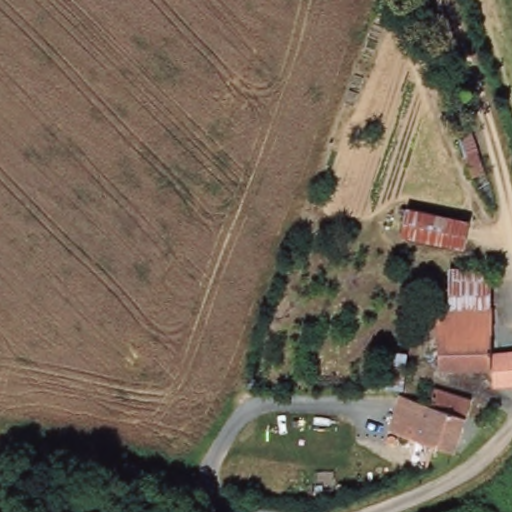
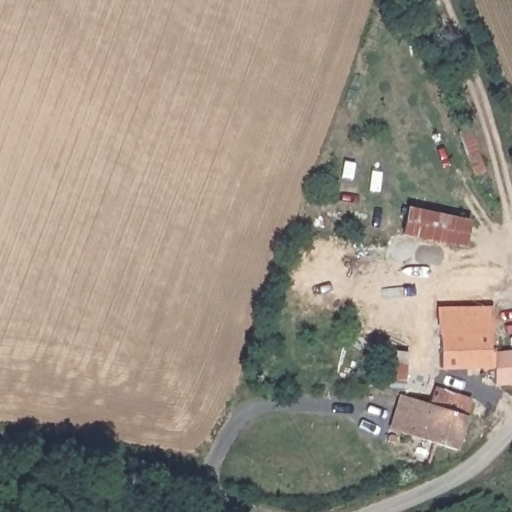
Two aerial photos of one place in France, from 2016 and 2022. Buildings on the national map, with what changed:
unchanged [(472,221),(465,249),(405,235),(412,207),(472,221)]
unchanged [(494,307),(455,308),(453,267),(491,267),(494,307)]
unchanged [(496,351),(497,368),(442,369),(442,308),(455,308),(494,307),(496,351)]
unchanged [(497,368),(496,351),(512,350),(512,385),(499,386),(497,368)]
unchanged [(402,353),(398,389),(381,387),(386,351),(402,353)]
unchanged [(432,445),(426,467),(411,462),(414,449),(405,453),(398,451),(397,444),(401,439),(412,402),(426,405),(431,388),(469,398),(465,415),(455,451),(432,445)]

